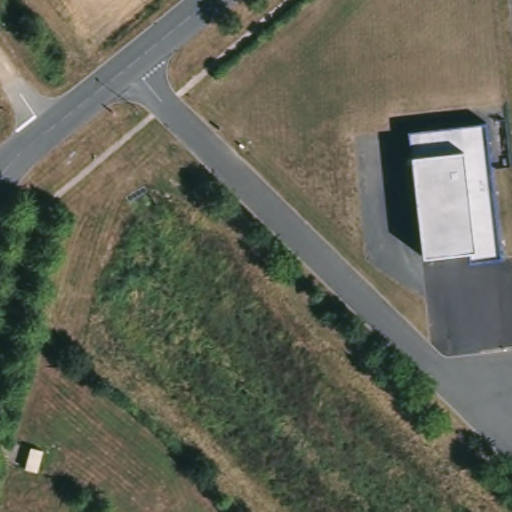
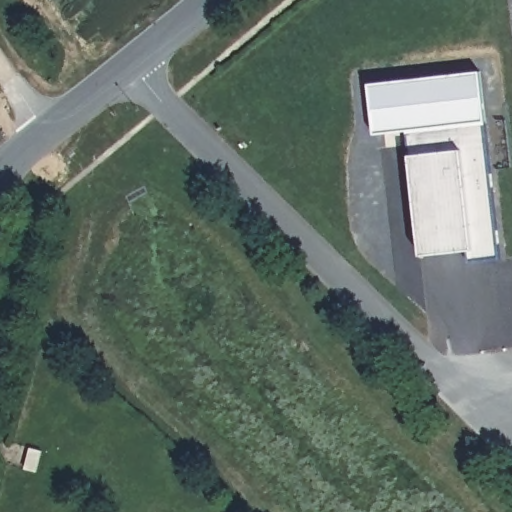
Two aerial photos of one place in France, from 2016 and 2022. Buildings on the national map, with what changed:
new [(410,132),(373,135),(368,84),(479,72),(482,123),(410,132)]
unchanged [(471,259),(469,250),(422,254),(412,154),(410,132),(482,123),(498,257),(471,259)]
unchanged [(53,453),(47,475),(26,469),(31,448),(53,453)]

